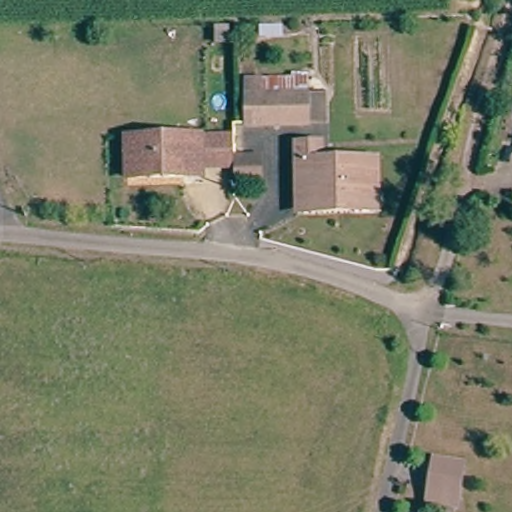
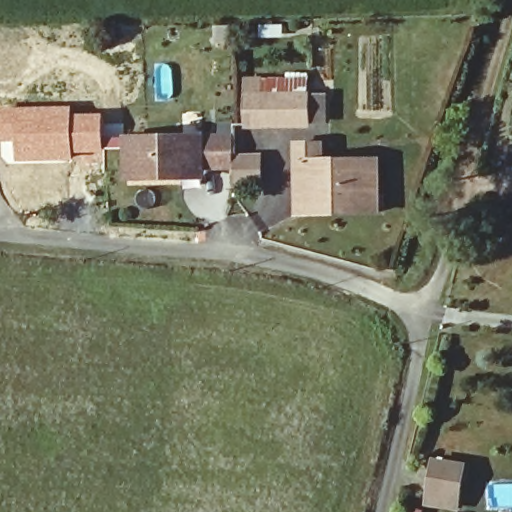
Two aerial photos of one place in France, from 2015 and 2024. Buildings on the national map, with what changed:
unchanged [(305,88),(306,117),(245,119),(245,90),(305,88)]
new [(72,105),(73,112),(73,157),(73,161),(10,161),(9,142),(0,142),(0,105),(72,105)]
new [(73,112),(104,113),(104,156),(73,157),(73,112)]
unchanged [(185,178),(129,179),(128,138),(204,136),(205,164),(205,177),(185,178)]
unchanged [(380,157),(380,212),(358,213),(358,205),(332,205),(332,210),(310,210),(310,184),(296,184),(296,142),(321,141),(321,158),(380,157)]
unchanged [(263,188),(237,189),(236,165),(263,165),(263,188)]
unchanged [(440,506),(424,503),(430,460),(462,466),(458,496),(456,510),(440,506)]

